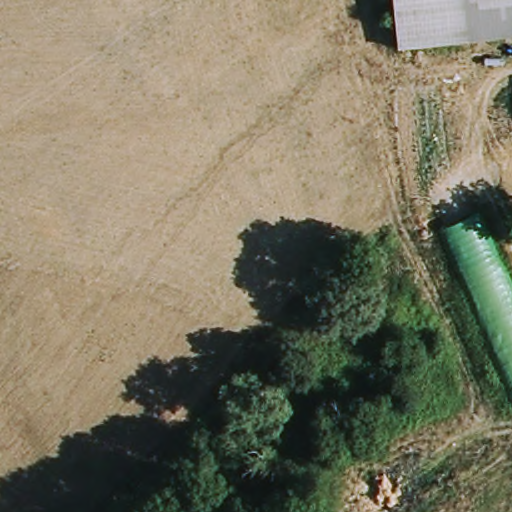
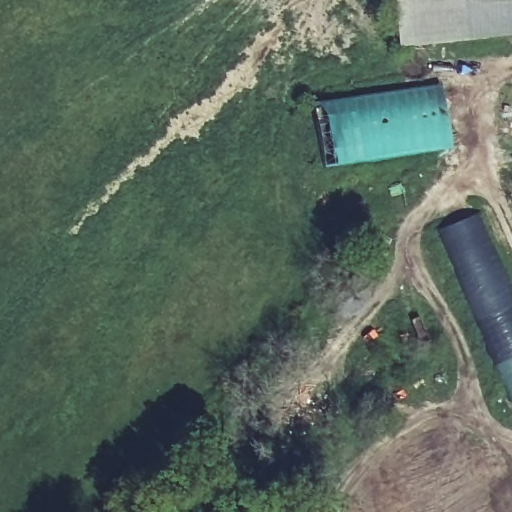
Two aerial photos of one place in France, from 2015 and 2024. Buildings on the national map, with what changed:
unchanged [(512,38),(397,50),(391,0),(512,0),(512,38)]
new [(313,106),(441,87),(452,149),(322,170),(313,106)]
unchanged [(512,289),(512,395),(445,236),(481,220),(512,289)]

